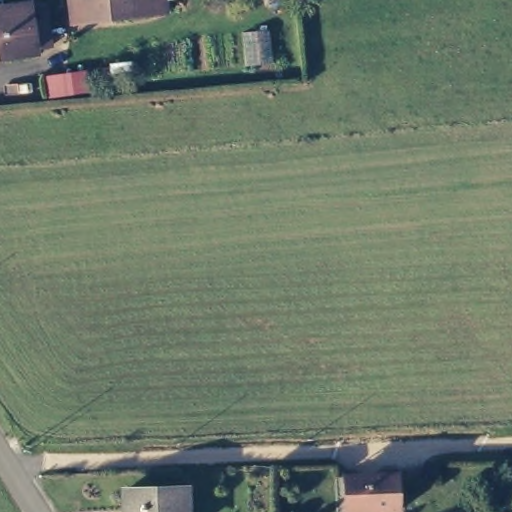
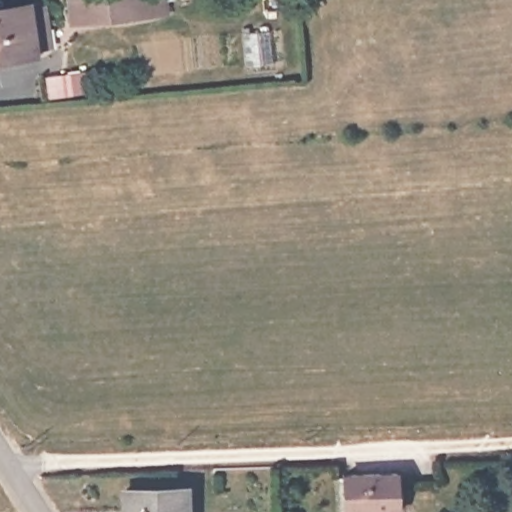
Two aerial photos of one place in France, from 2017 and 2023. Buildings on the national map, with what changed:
unchanged [(93,0),(158,0),(158,2),(96,15),(93,0)]
unchanged [(31,56),(0,62),(0,17),(40,10),(47,49),(30,54),(31,56)]
unchanged [(350,478),(398,477),(400,503),(400,512),(350,512),(350,506),(350,478)]
unchanged [(122,490),(179,488),(181,512),(124,512),(122,490)]

